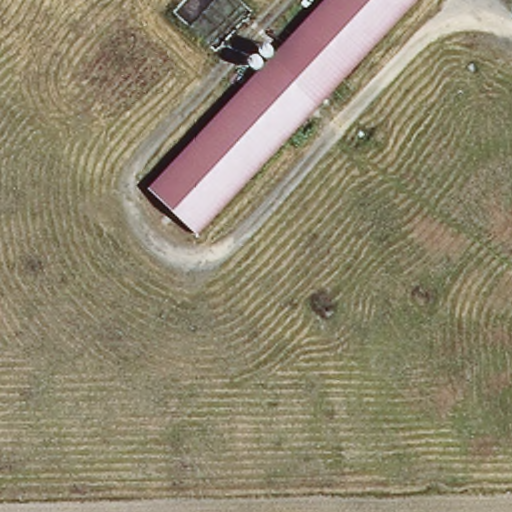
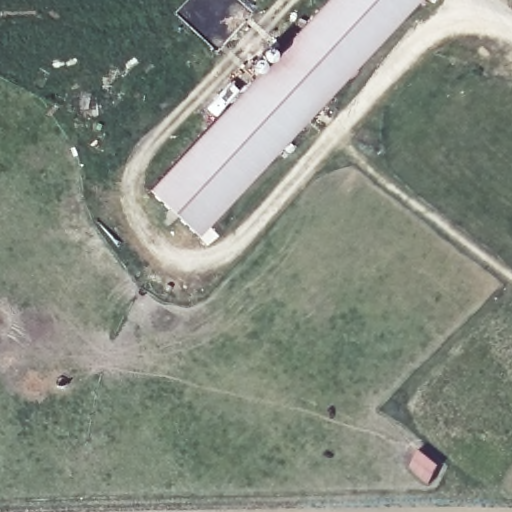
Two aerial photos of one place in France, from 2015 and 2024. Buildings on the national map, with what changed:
unchanged [(154,192),(330,0),(418,0),(201,236),(154,192)]

